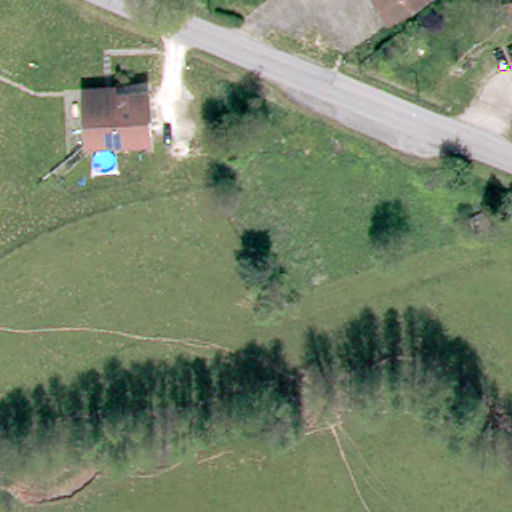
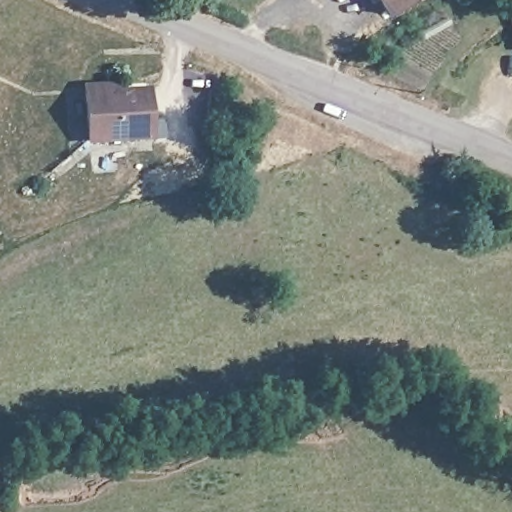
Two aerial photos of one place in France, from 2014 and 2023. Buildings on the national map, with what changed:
unchanged [(420,0),(394,16),(383,1),(376,5),(373,0),(420,0)]
unchanged [(502,4),(512,1),(512,31),(502,4)]
unchanged [(146,140),(85,143),(82,96),(82,88),(111,86),(111,94),(144,92),(146,140)]

